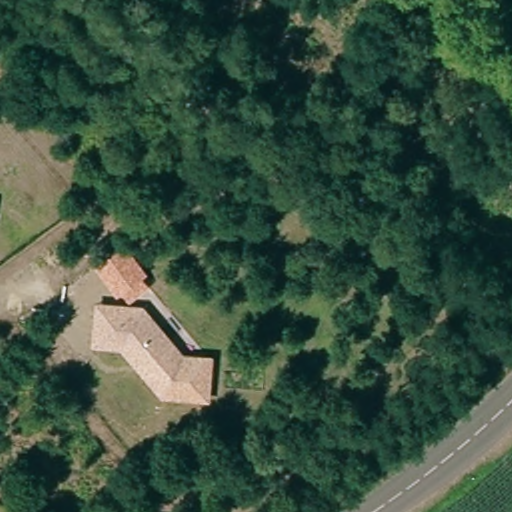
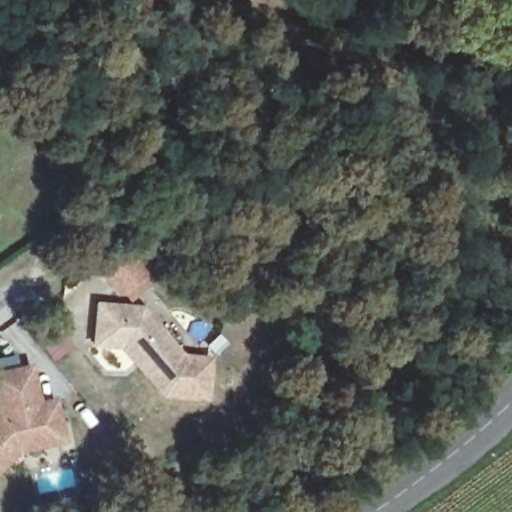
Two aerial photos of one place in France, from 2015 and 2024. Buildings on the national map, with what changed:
new [(141,277),(147,286),(127,300),(120,292),(115,296),(88,263),(121,240),(147,272),(141,277)]
unchanged [(143,306),(182,353),(211,356),(208,401),(159,397),(118,350),(89,346),(94,303),(143,306)]
new [(0,469),(0,370),(32,362),(39,399),(56,396),(66,441),(18,453),(0,469)]

